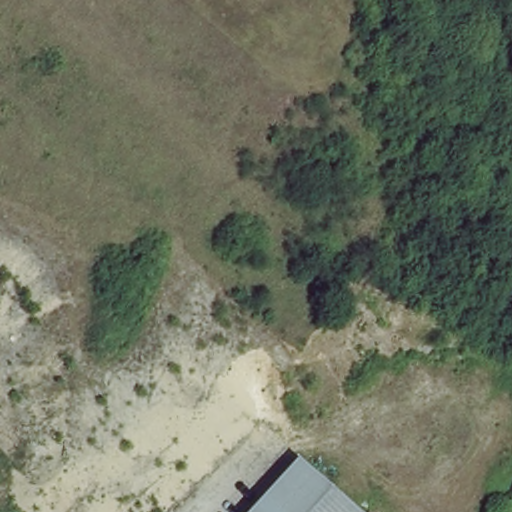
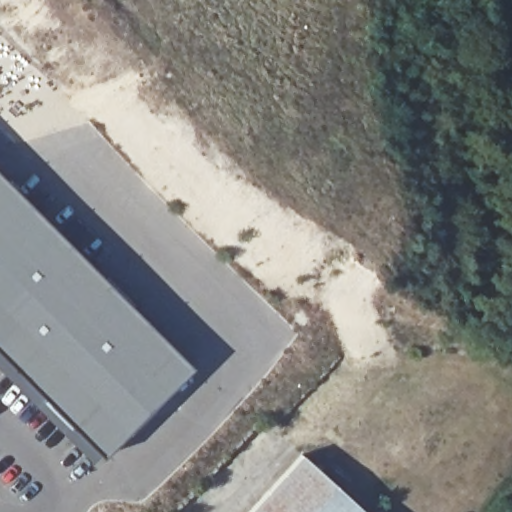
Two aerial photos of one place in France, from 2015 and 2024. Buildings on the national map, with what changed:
new [(188,365),(100,455),(0,354),(0,175),(188,365)]
unchanged [(367,512),(251,512),(305,453),(367,511),(367,512)]
unchanged [(367,511),(368,512),(367,512),(367,511)]

